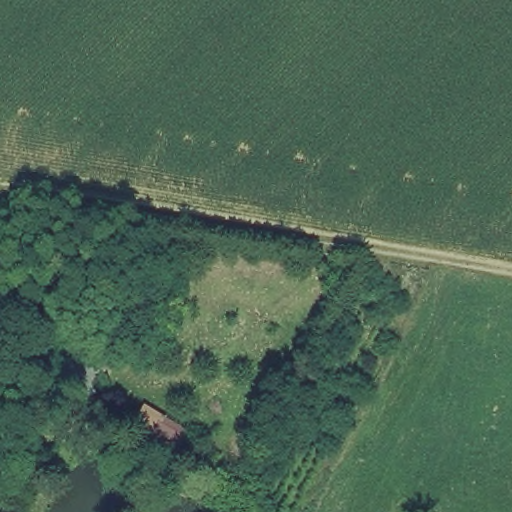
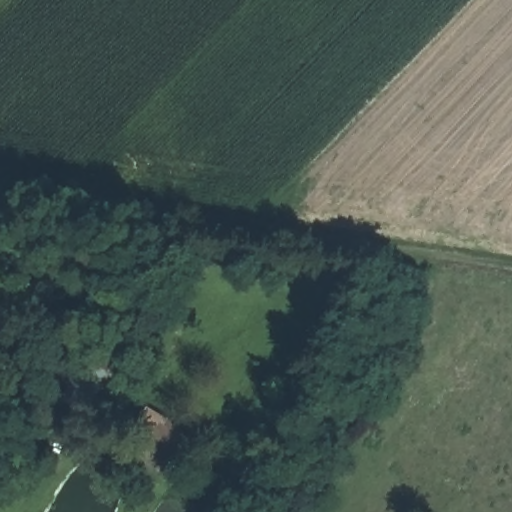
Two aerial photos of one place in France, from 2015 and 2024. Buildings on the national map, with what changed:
unchanged [(88,413),(62,403),(82,357),(106,368),(88,413)]
unchanged [(180,464),(148,444),(162,415),(195,429),(180,464)]

